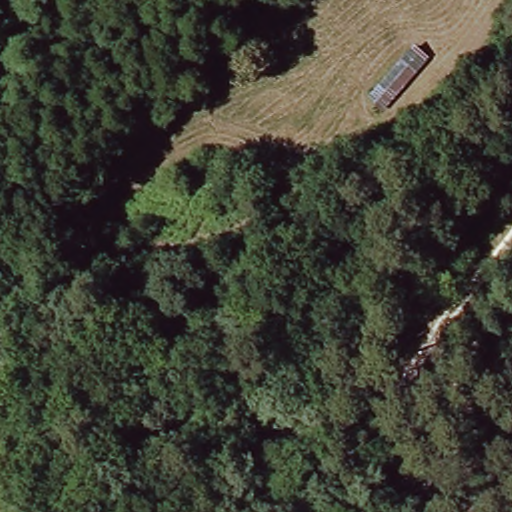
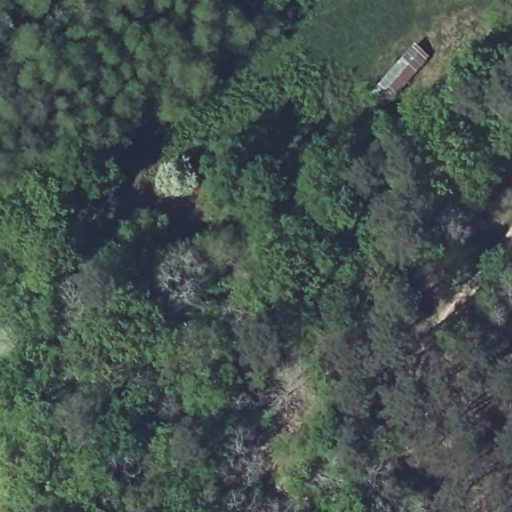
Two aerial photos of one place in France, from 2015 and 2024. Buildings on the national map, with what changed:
unchanged [(430,62),(386,112),(372,102),(416,48),(430,62)]

